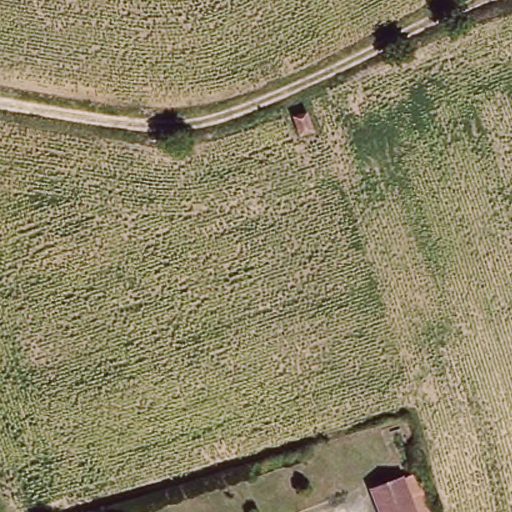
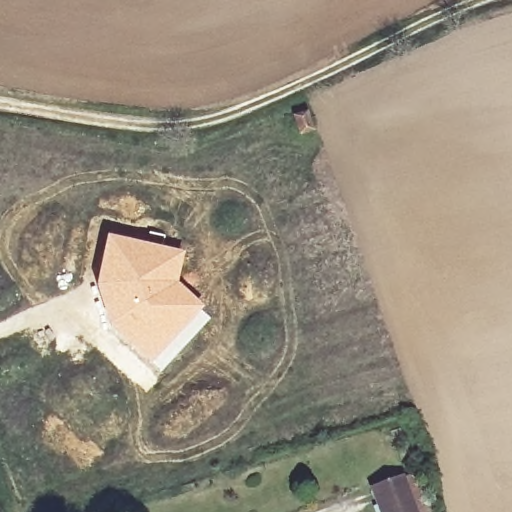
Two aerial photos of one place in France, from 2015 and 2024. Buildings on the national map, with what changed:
unchanged [(298,120),(311,116),(315,131),(302,136),(298,120)]
new [(159,373),(151,366),(112,327),(98,291),(97,281),(107,234),(147,242),(185,253),(178,283),(205,308),(212,317),(159,373)]
unchanged [(416,471),(430,512),(382,512),(371,484),(416,471)]

